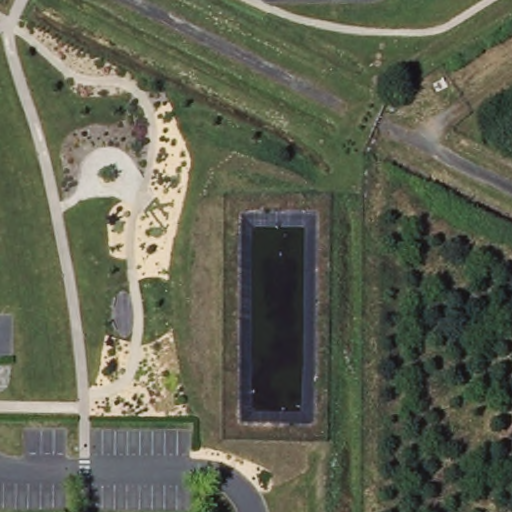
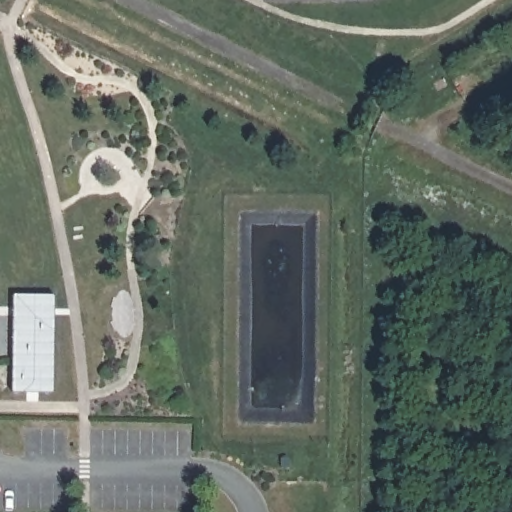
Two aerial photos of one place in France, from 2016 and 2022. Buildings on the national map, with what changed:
new [(14,294),(55,294),(54,392),(13,391),(14,294)]

